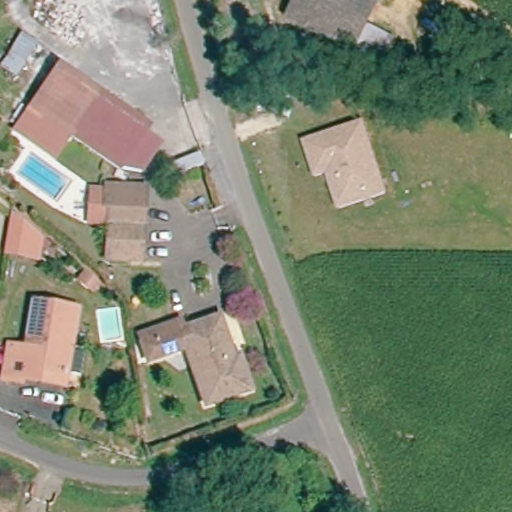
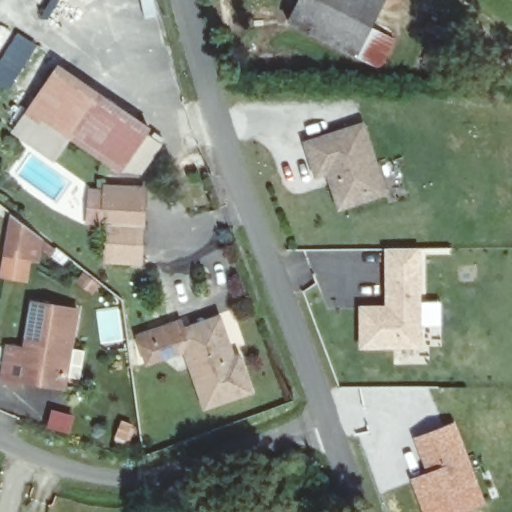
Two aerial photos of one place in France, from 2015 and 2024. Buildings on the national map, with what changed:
unchanged [(396,34),(384,64),(291,26),(301,0),(383,0),(374,25),(396,34)]
unchanged [(62,67),(113,106),(156,140),(152,145),(166,155),(145,182),(121,174),(120,174),(119,175),(70,137),(53,160),(25,139),(13,130),(62,67)]
unchanged [(361,124),(388,194),(341,212),(327,177),(316,181),(303,146),(361,124)]
unchanged [(126,252),(111,252),(111,219),(91,218),(92,201),(92,186),(121,187),(147,187),(145,252),(126,252)]
unchanged [(27,259),(2,255),(11,208),(32,225),(43,234),(38,261),(27,259)]
new [(359,349),(358,305),(384,305),(385,248),(421,248),(421,348),(359,349)]
unchanged [(18,383),(0,380),(6,343),(23,346),(30,301),(76,309),(70,351),(85,353),(82,379),(66,376),(64,391),(18,383)]
unchanged [(179,334),(212,321),(228,361),(236,358),(248,390),(205,407),(184,351),(160,361),(148,366),(138,339),(151,334),(175,325),(179,334)]
new [(479,486),(421,508),(410,478),(426,472),(413,437),(455,422),(479,486)]

